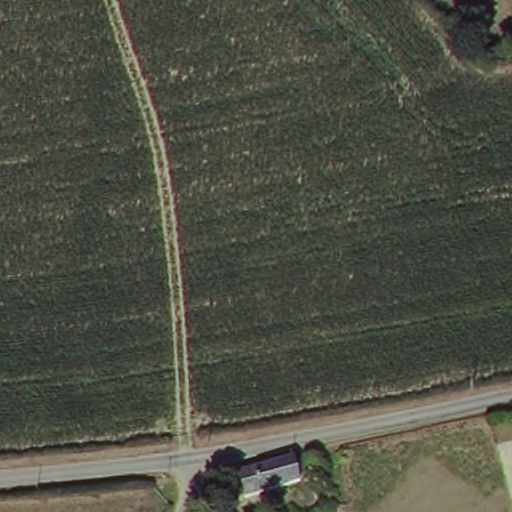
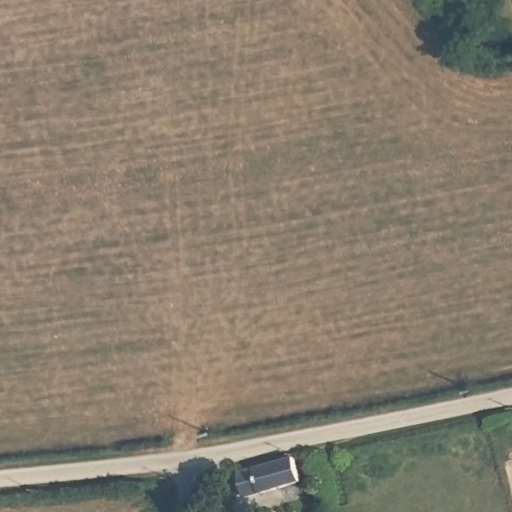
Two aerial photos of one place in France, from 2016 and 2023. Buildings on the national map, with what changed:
unchanged [(235,473),(290,460),(293,484),(239,497),(235,473)]

